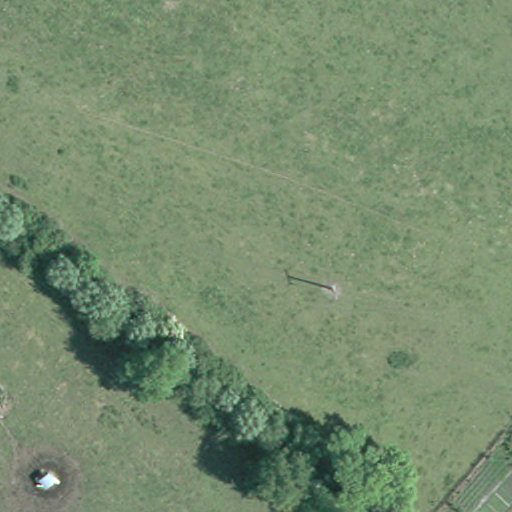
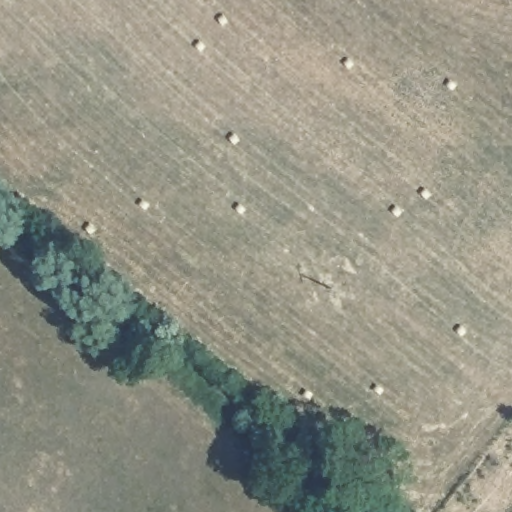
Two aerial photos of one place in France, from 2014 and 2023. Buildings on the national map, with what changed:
[]

